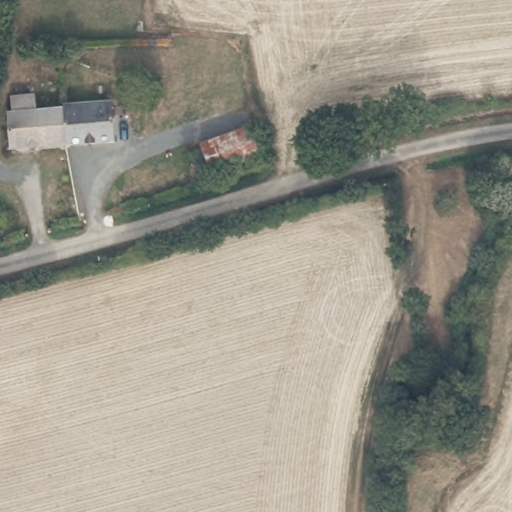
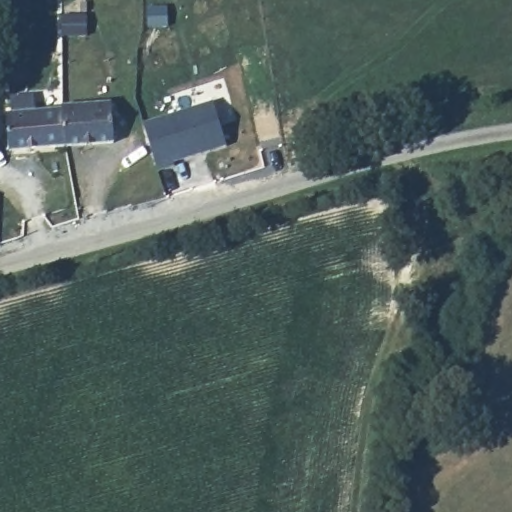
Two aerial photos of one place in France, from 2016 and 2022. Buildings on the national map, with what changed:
new [(62,16),(87,15),(87,36),(61,36),(62,16)]
unchanged [(10,156),(7,115),(12,114),(12,95),(36,92),(39,111),(60,111),(64,151),(10,156)]
new [(211,101),(227,146),(156,170),(141,123),(211,101)]
unchanged [(60,111),(60,105),(115,104),(116,147),(64,151),(60,111)]
demolished [(205,156),(196,160),(194,150),(202,146),(205,156)]

